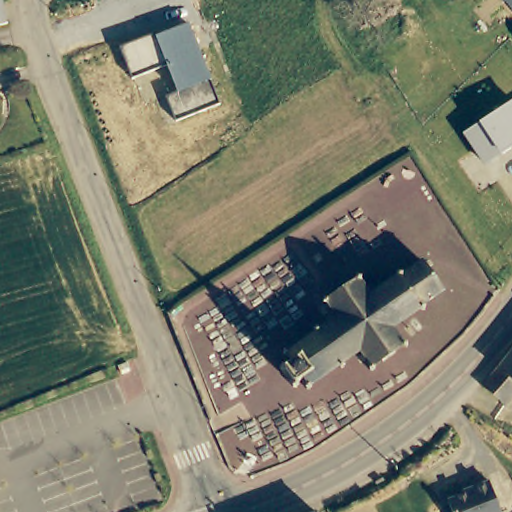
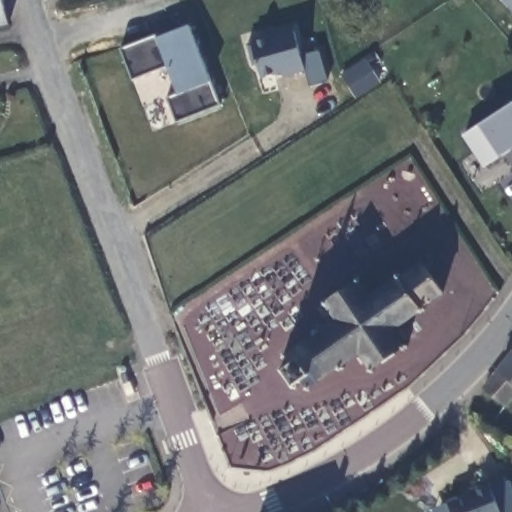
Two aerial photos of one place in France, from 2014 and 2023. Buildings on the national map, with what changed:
new [(512,0),(512,9),(505,0),(512,0)]
unchanged [(0,31),(0,6),(9,29),(0,31)]
unchanged [(177,121),(167,95),(176,91),(167,65),(133,79),(121,47),(190,23),(222,104),(177,121)]
new [(311,85),(307,69),(285,76),(283,72),(263,78),(252,41),(294,28),(303,54),(321,49),(330,80),(311,85)]
unchanged [(463,134),(512,101),(512,149),(485,167),(463,134)]
unchanged [(400,340),(367,364),(355,349),(311,382),(305,373),(294,381),(285,366),(294,359),(288,350),(335,318),(321,298),(354,275),(368,294),(415,262),(436,290),(389,324),(400,340)]
unchanged [(484,389),(512,356),(512,400),(504,409),(484,389)]
unchanged [(500,512),(450,512),(446,502),(463,496),(462,493),(490,484),(500,512)]
unchanged [(290,511),(291,512),(288,512),(290,511)]
unchanged [(311,511),(312,512),(307,512),(311,511)]

